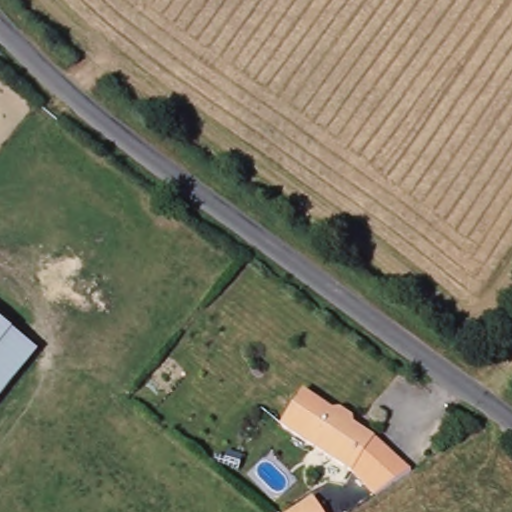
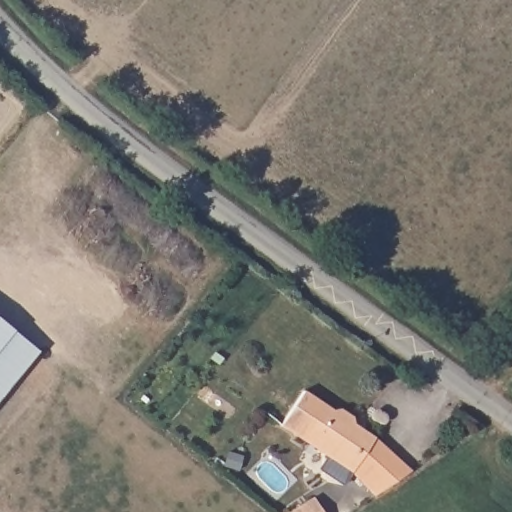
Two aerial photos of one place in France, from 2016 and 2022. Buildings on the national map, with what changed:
unchanged [(42,352),(14,386),(0,374),(0,317),(42,352)]
unchanged [(14,386),(0,403),(0,374),(14,386)]
unchanged [(357,472),(337,458),(286,425),(309,391),(338,411),(346,409),(357,417),(359,424),(367,430),(380,438),(357,472)]
unchanged [(345,465),(357,472),(380,438),(414,474),(373,500),(353,477),(344,492),(324,481),(337,458),(345,465)]
unchanged [(297,512),(319,497),(328,512),(297,512)]

